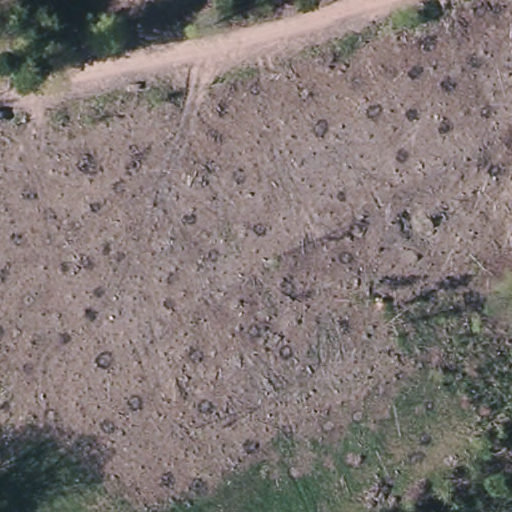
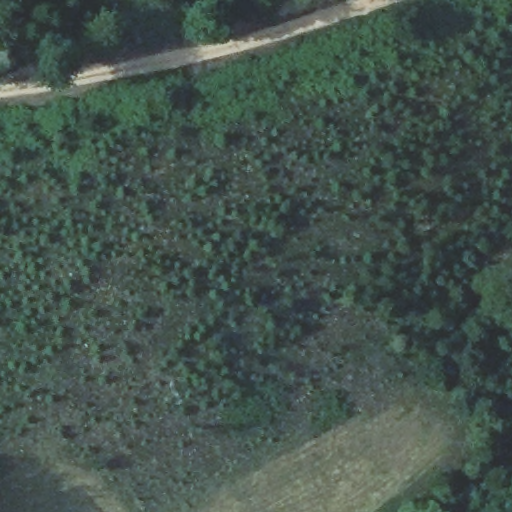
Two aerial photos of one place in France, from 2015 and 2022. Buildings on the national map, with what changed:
[]

